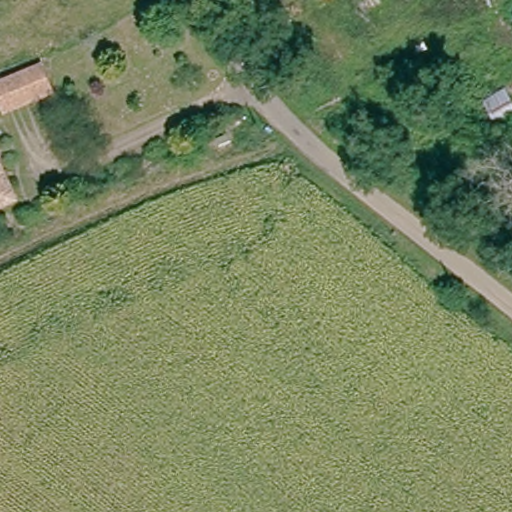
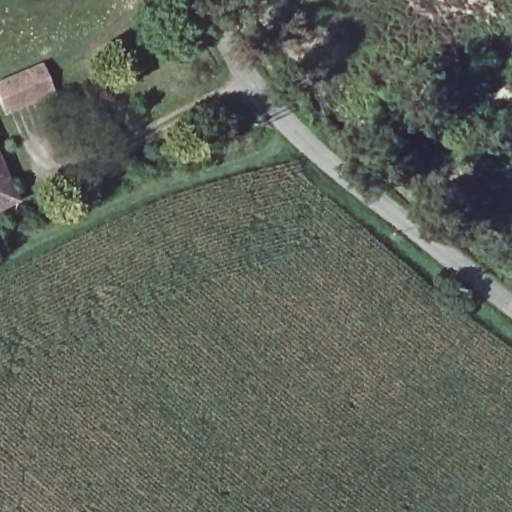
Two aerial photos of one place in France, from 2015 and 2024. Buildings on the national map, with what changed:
unchanged [(12,113),(1,88),(47,68),(57,93),(12,113)]
unchanged [(0,203),(0,167),(15,196),(0,203)]

